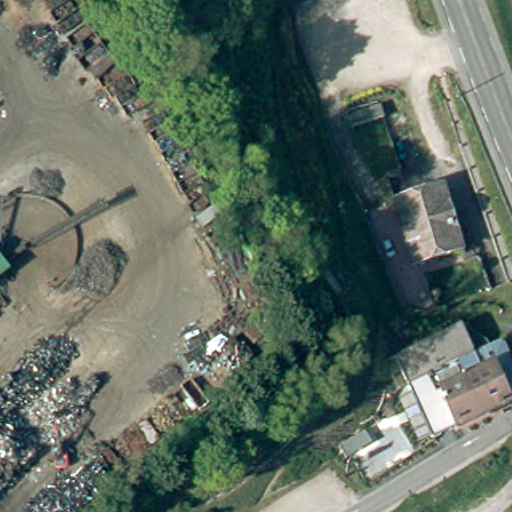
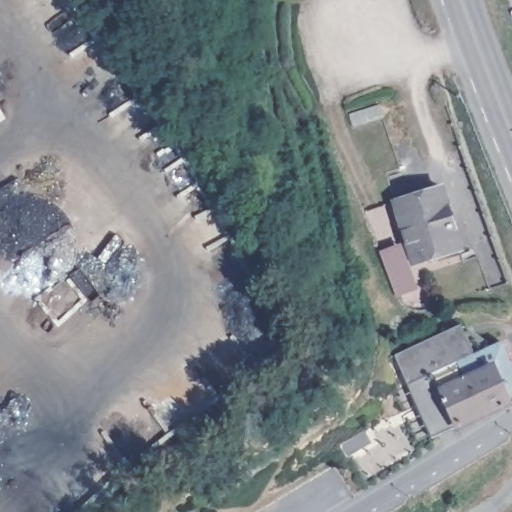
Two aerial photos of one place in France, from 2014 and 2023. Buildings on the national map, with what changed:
unchanged [(381,202),(449,183),(468,246),(408,264),(402,267),(384,211),(381,202)]
unchanged [(433,388),(424,391),(418,377),(412,363),(435,354),(469,340),(477,363),(479,365),(480,368),(480,369),(433,388)]
unchanged [(433,388),(480,369),(507,358),(512,370),(512,402),(508,404),(512,413),(512,417),(458,443),(433,388)]

